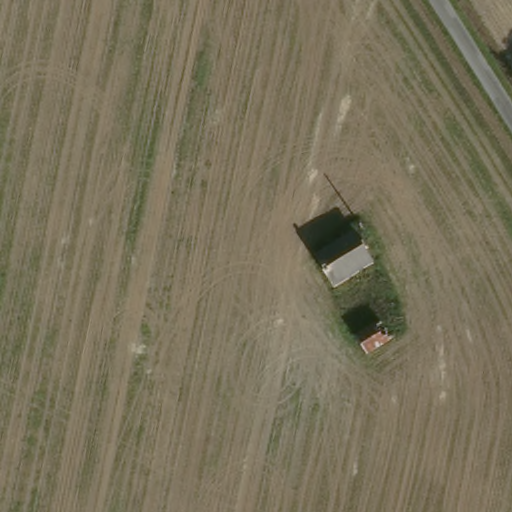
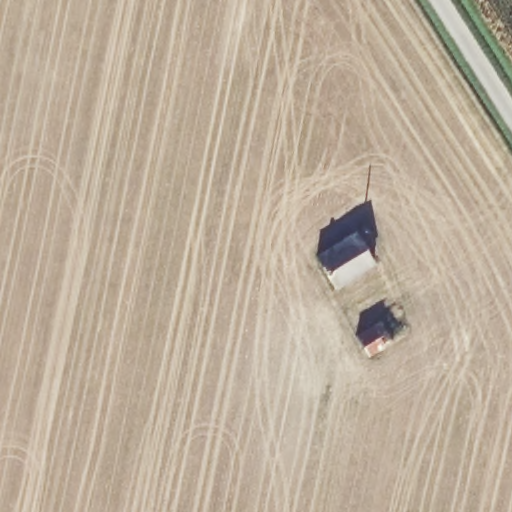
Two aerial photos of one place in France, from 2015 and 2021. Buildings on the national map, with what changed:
unchanged [(376,261),(337,286),(335,283),(317,256),(356,230),(376,261)]
unchanged [(412,323),(369,352),(358,337),(400,308),(412,323)]

